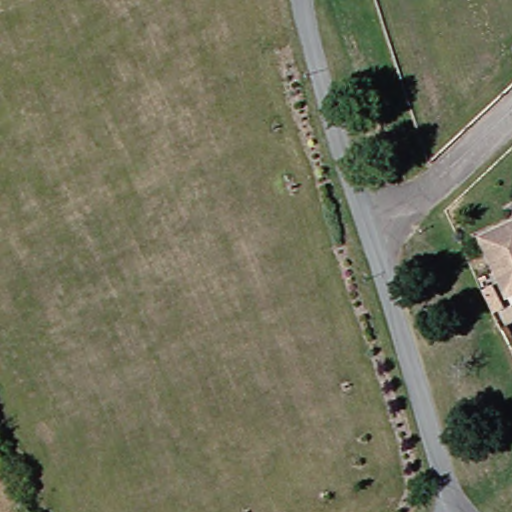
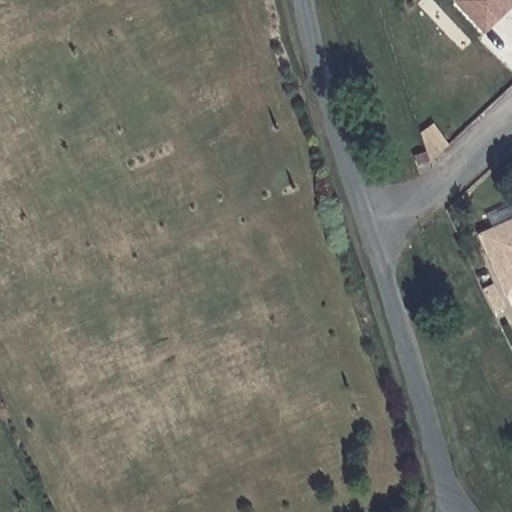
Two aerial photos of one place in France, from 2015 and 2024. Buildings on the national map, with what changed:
new [(452,1),(453,0),(512,0),(512,8),(485,35),(452,1)]
unchanged [(484,235),(512,221),(512,293),(511,293),(507,282),(484,235)]
unchanged [(503,308),(493,312),(483,290),(492,286),(503,308)]

